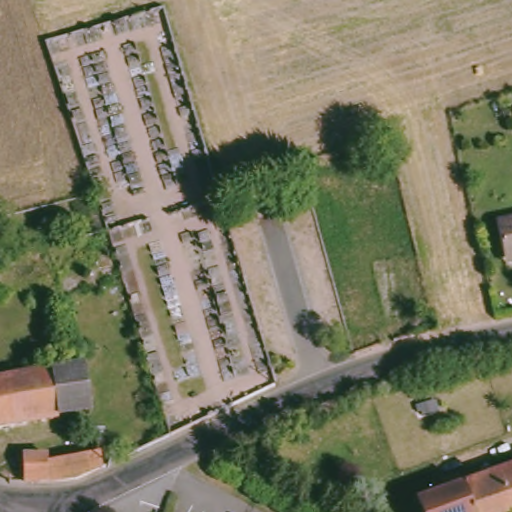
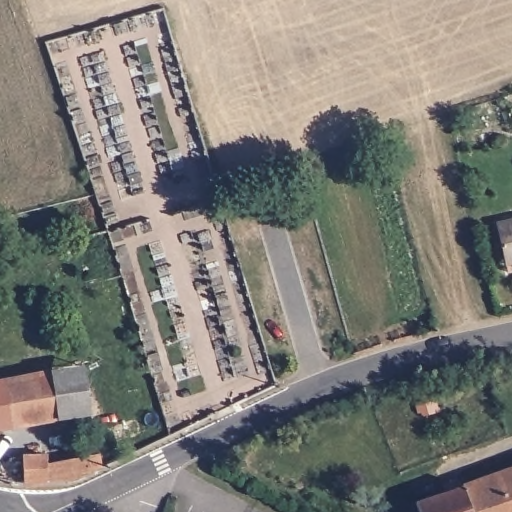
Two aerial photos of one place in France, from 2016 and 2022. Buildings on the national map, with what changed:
unchanged [(500,252),(491,219),(512,214),(512,256),(501,258),(500,252)]
unchanged [(90,408),(58,412),(51,365),(83,361),(90,408)]
unchanged [(0,422),(0,374),(51,365),(58,412),(0,422)]
unchanged [(102,467),(77,479),(48,482),(23,483),(23,456),(47,456),(48,463),(100,453),(102,467)]
unchanged [(502,512),(498,503),(472,512),(415,512),(411,502),(512,466),(512,512),(502,512)]

